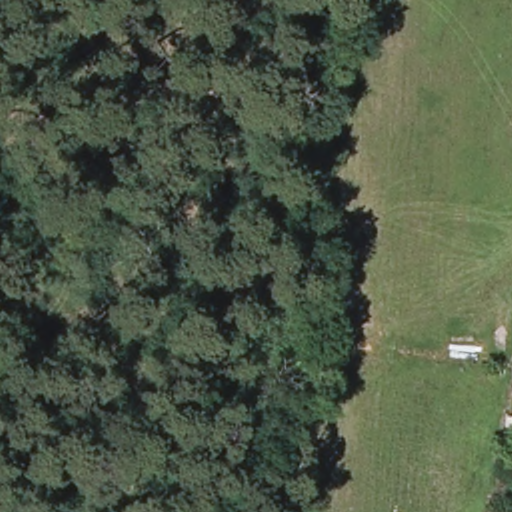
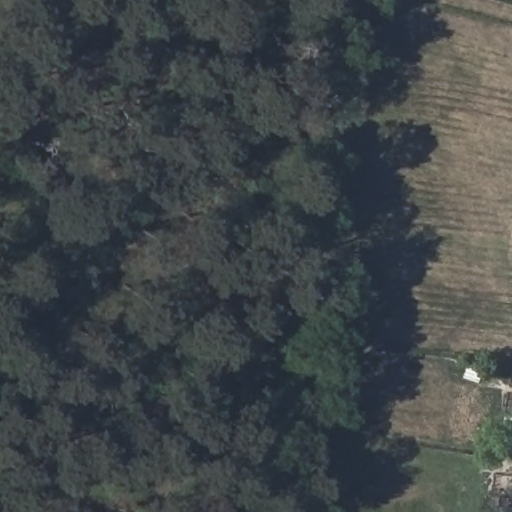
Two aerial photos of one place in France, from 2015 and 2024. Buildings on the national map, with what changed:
[]

